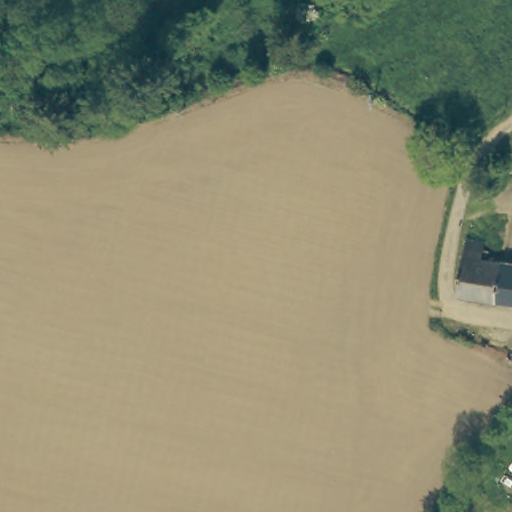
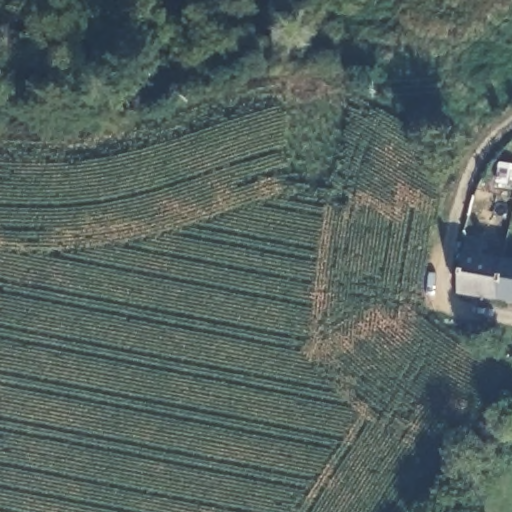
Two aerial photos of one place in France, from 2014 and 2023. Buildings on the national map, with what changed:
unchanged [(511,261),(505,299),(465,294),(468,254),(471,237),(489,239),(487,257),(511,260),(511,261)]
unchanged [(512,301),(505,299),(511,261),(512,261),(512,301)]

